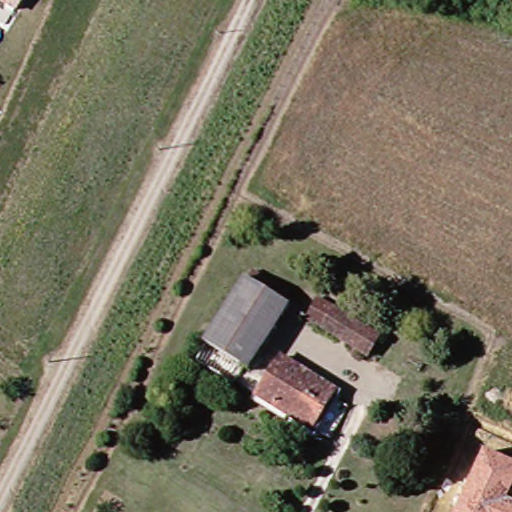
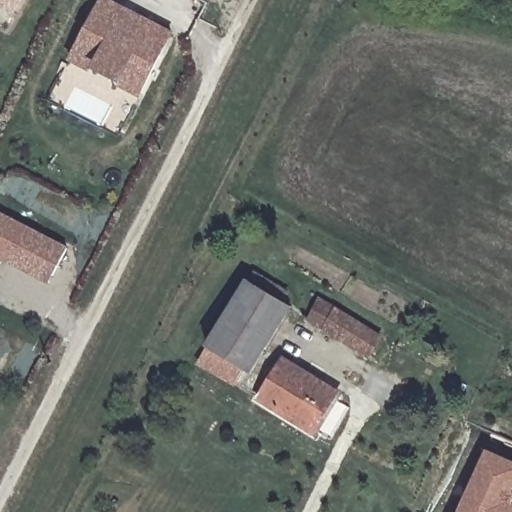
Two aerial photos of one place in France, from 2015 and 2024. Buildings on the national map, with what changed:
unchanged [(0,6),(0,0),(19,0),(12,12),(0,6)]
new [(111,0),(174,31),(139,98),(117,86),(120,82),(93,68),(90,72),(68,61),(100,0),(111,0)]
new [(67,245),(49,282),(0,259),(0,211),(67,245)]
unchanged [(299,307),(270,351),(343,400),(314,438),(261,399),(271,381),(250,368),(238,386),(202,361),(257,278),(299,307)]
unchanged [(387,340),(374,357),(313,321),(327,298),(387,340)]
new [(482,450),(512,461),(512,492),(508,500),(512,501),(512,512),(456,512),(482,450)]

